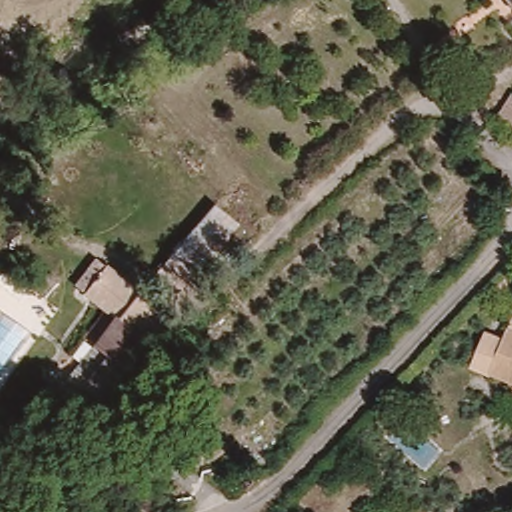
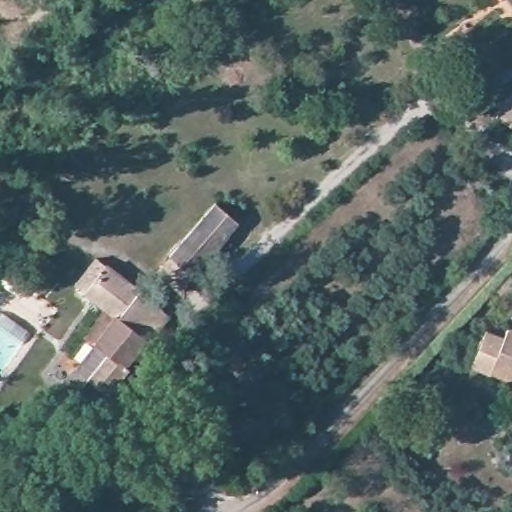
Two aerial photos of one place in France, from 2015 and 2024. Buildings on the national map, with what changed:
unchanged [(512,0),(512,15),(500,0),(512,0)]
unchanged [(512,99),(512,123),(501,116),(512,99)]
unchanged [(170,259),(182,244),(215,205),(237,224),(205,263),(193,278),(170,259)]
unchanged [(97,411),(67,388),(82,370),(73,364),(113,313),(90,293),(111,266),(173,315),(152,342),(132,368),(97,411)]
unchanged [(492,370),(510,324),(512,325),(512,378),(492,370)]

